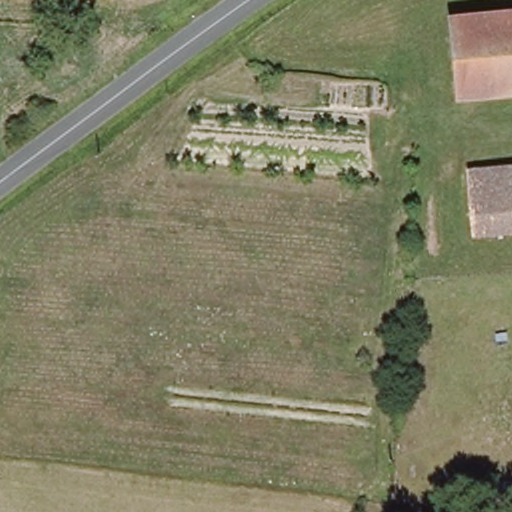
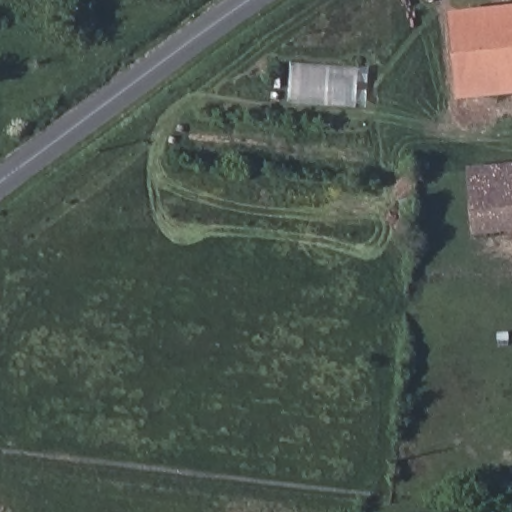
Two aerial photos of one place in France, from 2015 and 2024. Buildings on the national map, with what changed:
unchanged [(512,89),(470,92),(467,15),(512,12),(512,89)]
new [(292,64),(360,68),(358,106),(289,102),(292,64)]
unchanged [(472,165),(512,163),(512,191),(473,192),(472,165)]
unchanged [(473,192),(512,191),(512,228),(475,230),(473,192)]

